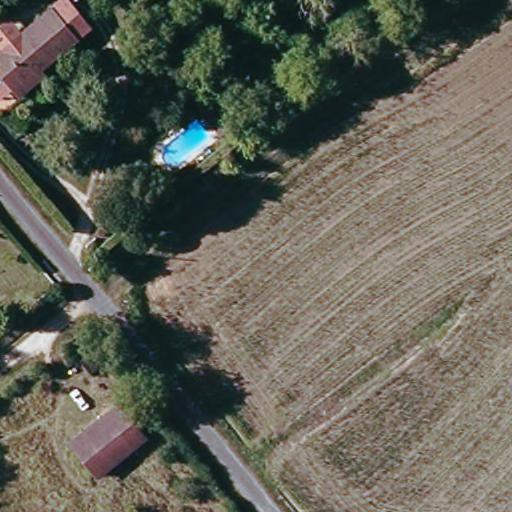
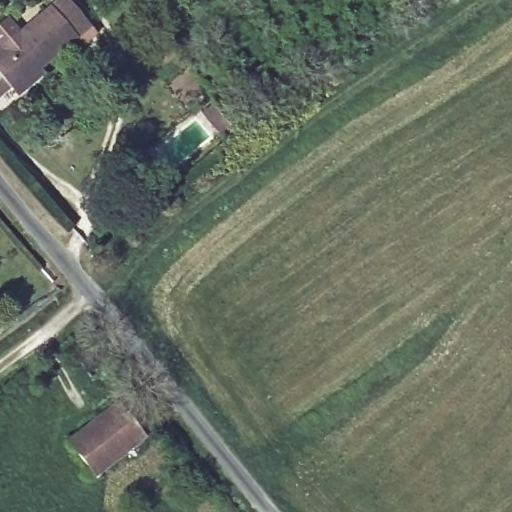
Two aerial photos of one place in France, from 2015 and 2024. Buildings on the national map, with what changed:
unchanged [(72,41),(7,91),(0,83),(0,50),(51,11),(72,41)]
unchanged [(63,439),(111,399),(140,433),(125,445),(92,473),(85,465),(63,439)]

